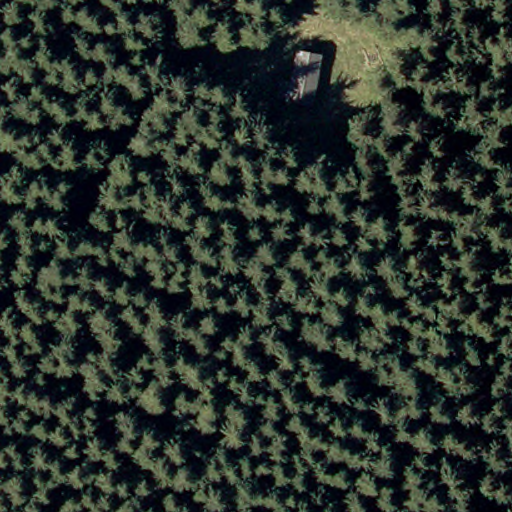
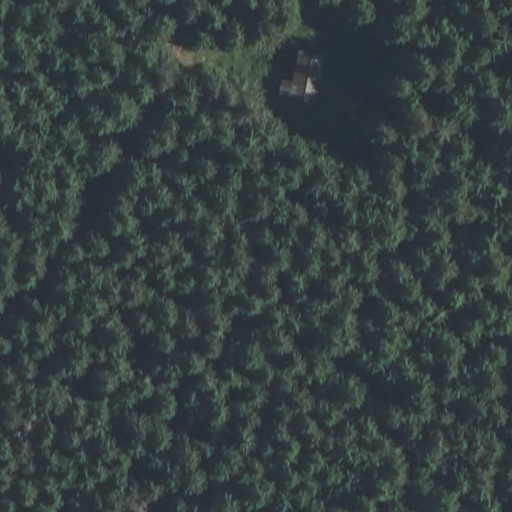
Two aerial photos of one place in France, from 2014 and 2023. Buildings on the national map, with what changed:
unchanged [(320,61),(311,108),(275,101),(279,80),(291,79),(296,54),(320,61)]

